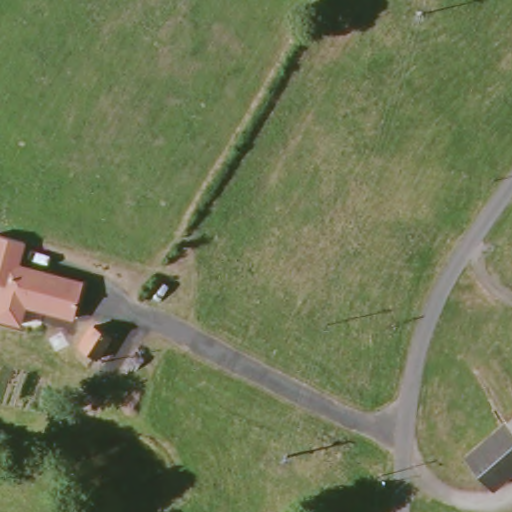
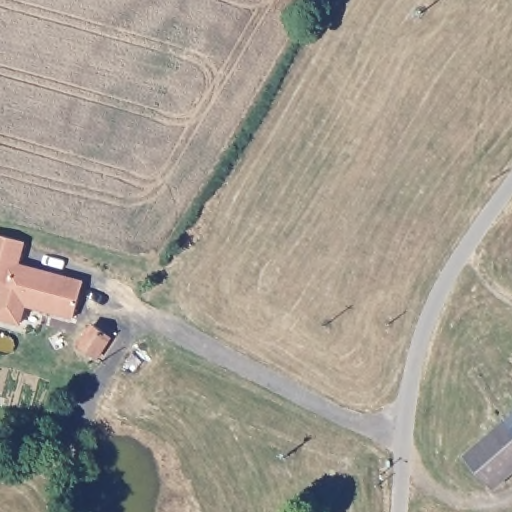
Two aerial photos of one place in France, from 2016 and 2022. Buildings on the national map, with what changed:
unchanged [(19,261),(84,278),(74,313),(26,300),(21,320),(0,314),(0,286),(2,279),(0,278),(0,231),(25,238),(19,261)]
unchanged [(82,344),(95,325),(114,337),(101,355),(82,344)]
unchanged [(488,489),(461,457),(512,412),(512,469),(488,489)]

